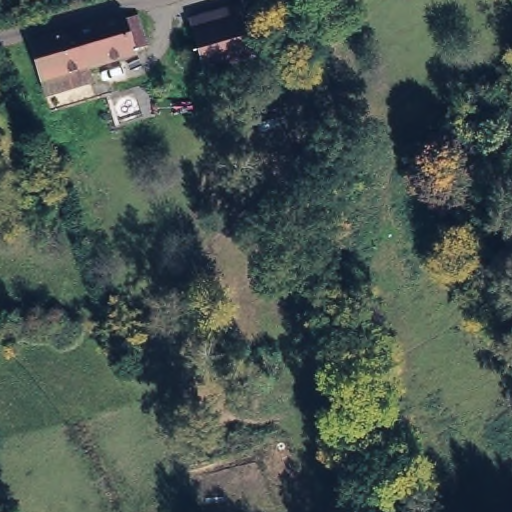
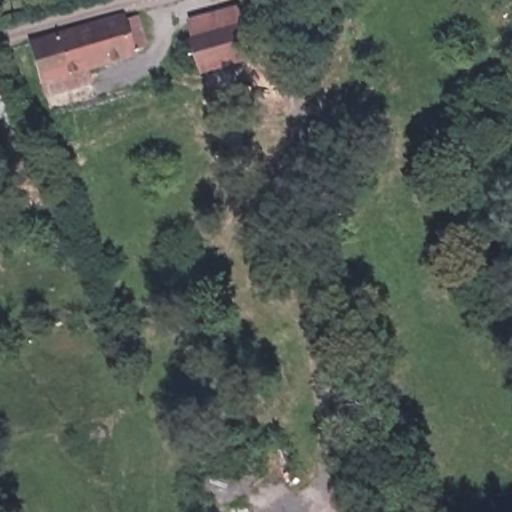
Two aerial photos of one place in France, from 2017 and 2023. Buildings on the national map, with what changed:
unchanged [(183,27),(239,11),(255,64),(201,76),(183,27)]
unchanged [(50,77),(35,33),(120,14),(135,56),(90,67),(50,77)]

